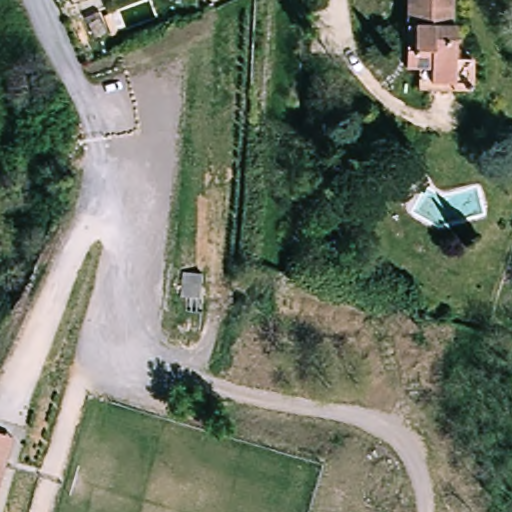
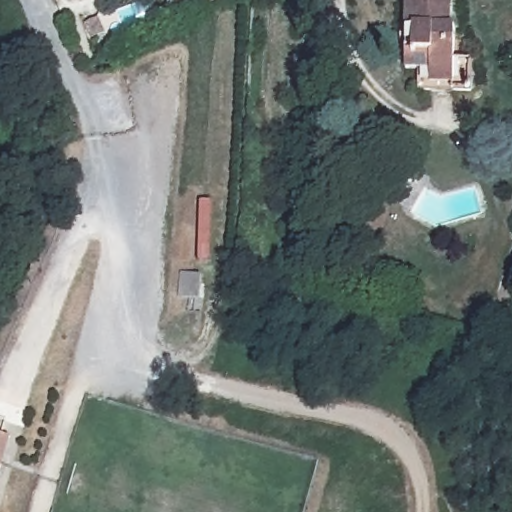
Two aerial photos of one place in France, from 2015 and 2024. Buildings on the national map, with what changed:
unchanged [(462,25),(461,56),(477,57),(476,86),(424,85),(424,64),(412,64),(412,0),(457,0),(457,25),(462,25)]
unchanged [(112,21),(115,28),(117,35),(108,38),(105,31),(103,24),(112,21)]
unchanged [(11,437),(2,467),(0,472),(0,434),(11,437)]

